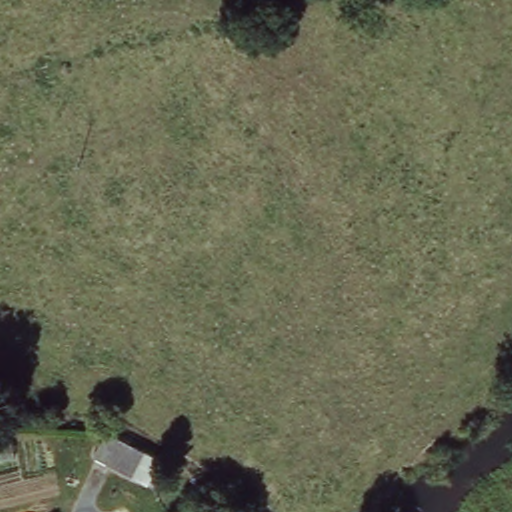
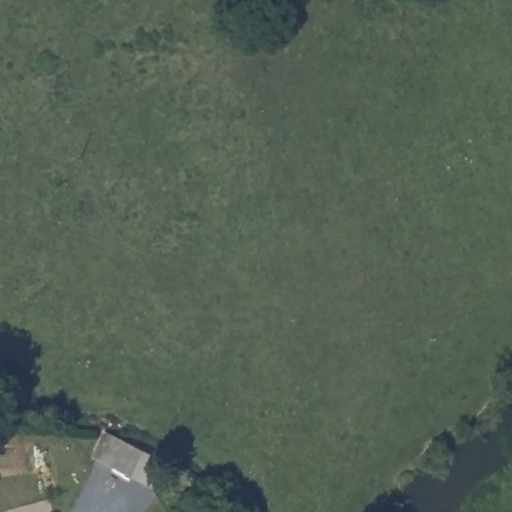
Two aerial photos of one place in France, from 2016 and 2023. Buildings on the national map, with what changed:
unchanged [(138,441),(126,467),(87,449),(100,423),(138,441)]

